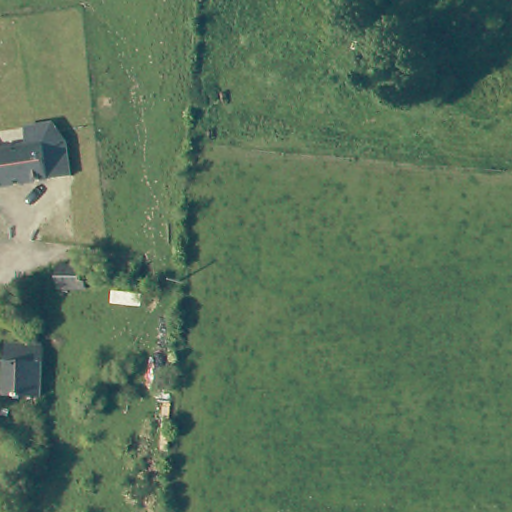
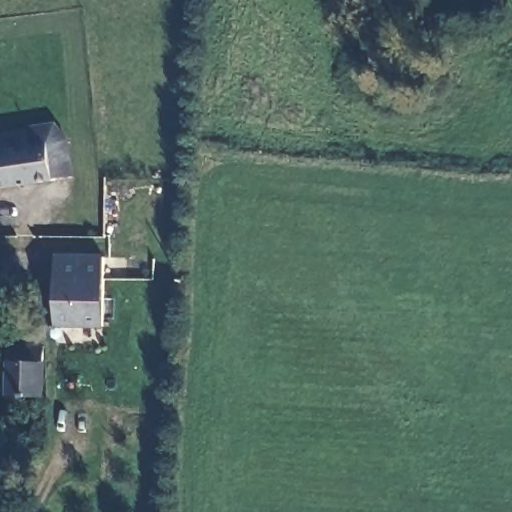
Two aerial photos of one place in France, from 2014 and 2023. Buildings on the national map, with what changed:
unchanged [(11,135),(46,130),(48,144),(52,180),(0,188),(0,150),(13,149),(11,135)]
new [(56,255),(105,255),(105,328),(55,328),(56,255)]
unchanged [(6,397),(7,362),(8,343),(45,344),(44,363),(42,398),(6,397)]

